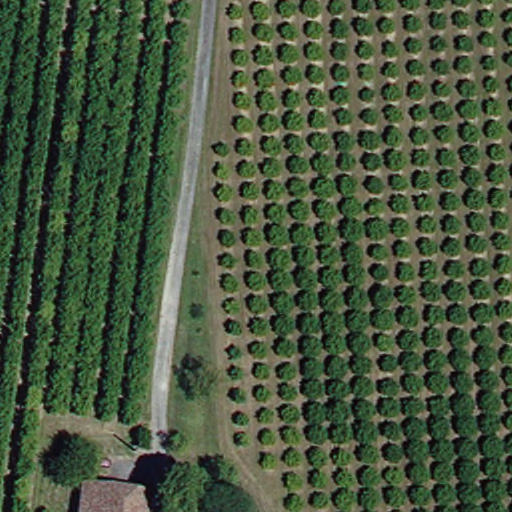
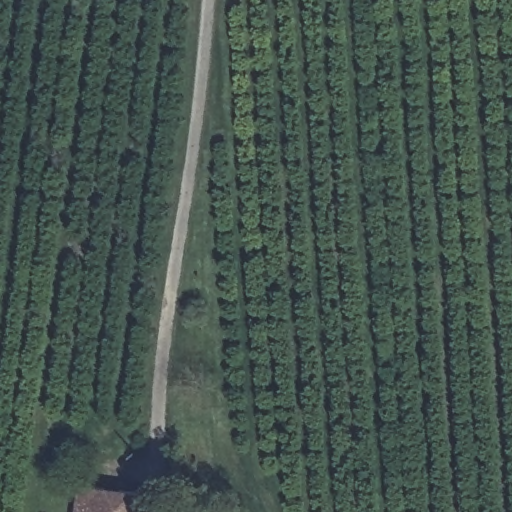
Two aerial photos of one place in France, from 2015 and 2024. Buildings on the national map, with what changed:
unchanged [(151,498),(150,512),(79,512),(82,487),(151,498)]

